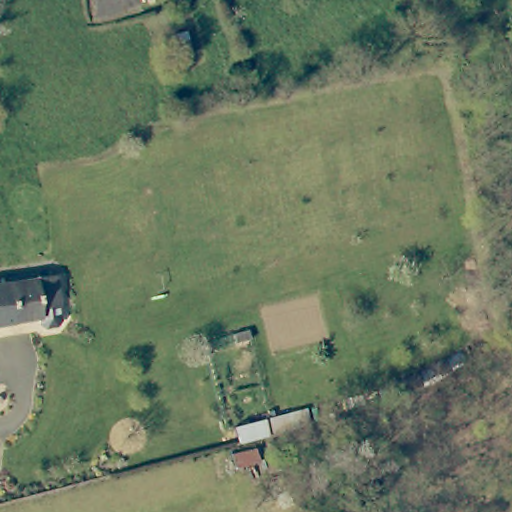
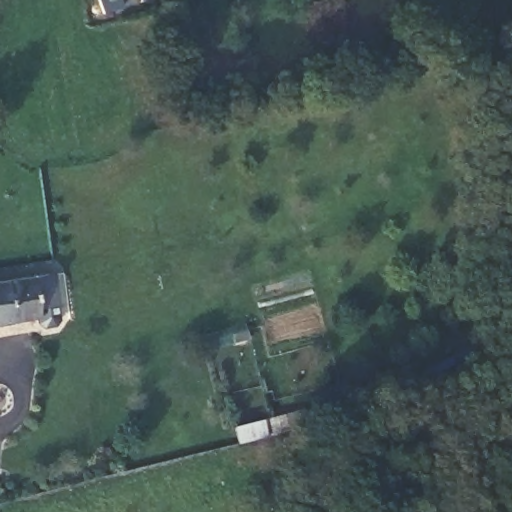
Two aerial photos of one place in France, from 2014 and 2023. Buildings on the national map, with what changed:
unchanged [(54,305),(35,306),(36,313),(0,318),(0,281),(50,275),(54,305)]
unchanged [(266,418),(269,431),(240,439),(238,424),(266,418)]

